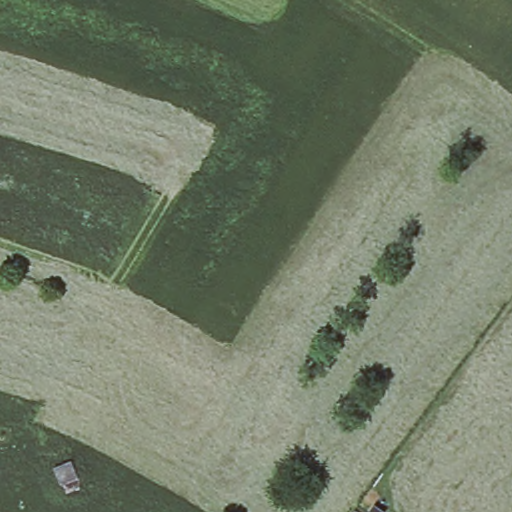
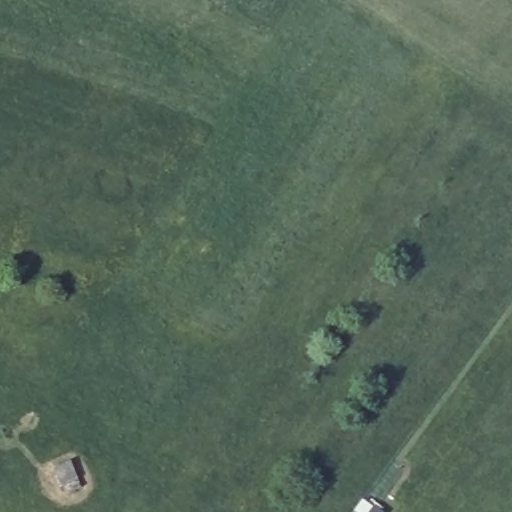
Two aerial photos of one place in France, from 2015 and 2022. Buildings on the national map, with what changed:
unchanged [(72,461),(83,487),(68,493),(65,485),(61,486),(54,468),(72,461)]

